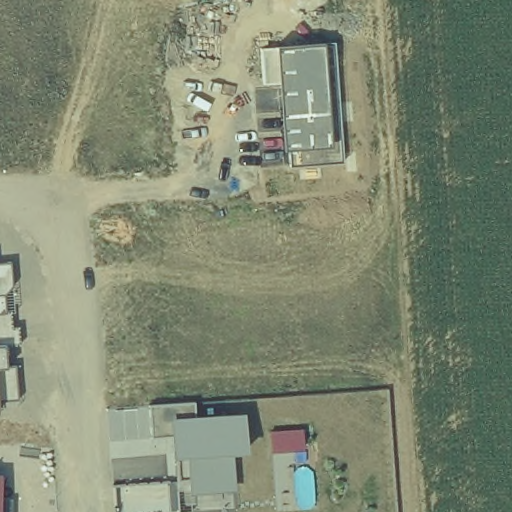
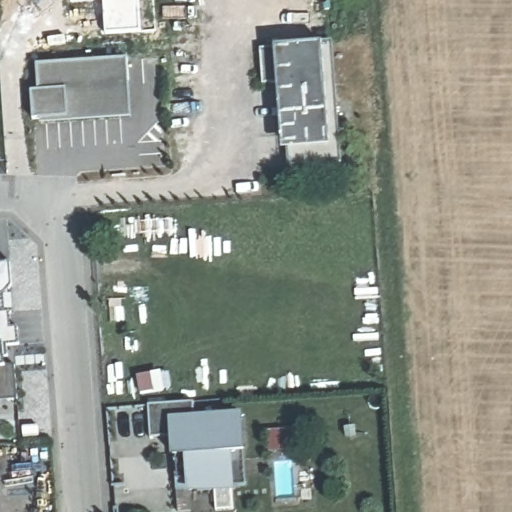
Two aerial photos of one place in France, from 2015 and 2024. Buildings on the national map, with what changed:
new [(103,35),(101,1),(73,2),(73,0),(140,0),(141,33),(103,35)]
unchanged [(277,47),(321,44),(335,43),(342,162),(291,165),(289,148),(285,148),(280,84),(264,84),(261,48),(277,47)]
new [(129,58),(132,118),(42,123),(42,118),(35,118),(34,91),(41,91),(40,64),(129,58)]
unchanged [(14,313),(10,313),(12,328),(19,327),(20,344),(5,345),(6,366),(16,366),(17,400),(0,402),(0,264),(11,262),(14,313)]
unchanged [(194,402),(196,416),(244,413),(247,451),(232,452),(234,490),(190,494),(189,479),(179,479),(177,457),(174,457),(172,435),(153,436),(151,404),(194,402)]
new [(270,430),(303,428),(305,449),(271,452),(270,430)]
unchanged [(0,506),(0,474),(2,474),(0,506)]

